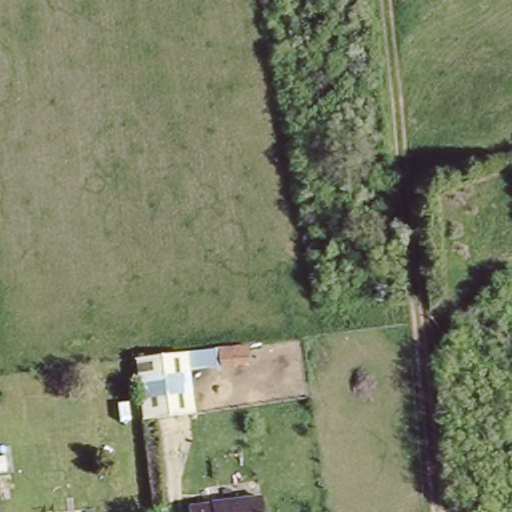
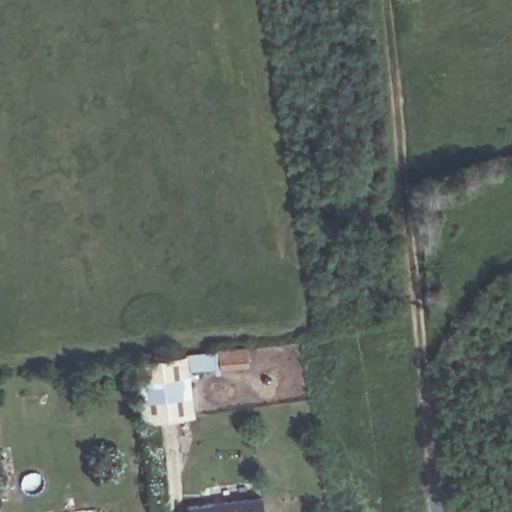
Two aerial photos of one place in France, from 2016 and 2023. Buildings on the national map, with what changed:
unchanged [(248,345),(249,370),(192,377),(197,418),(161,423),(163,446),(144,448),(143,423),(134,363),(248,345)]
unchanged [(198,509),(269,502),(270,512),(198,512),(198,509)]

